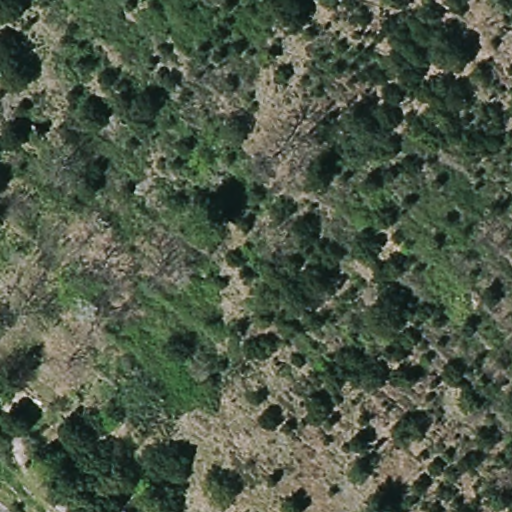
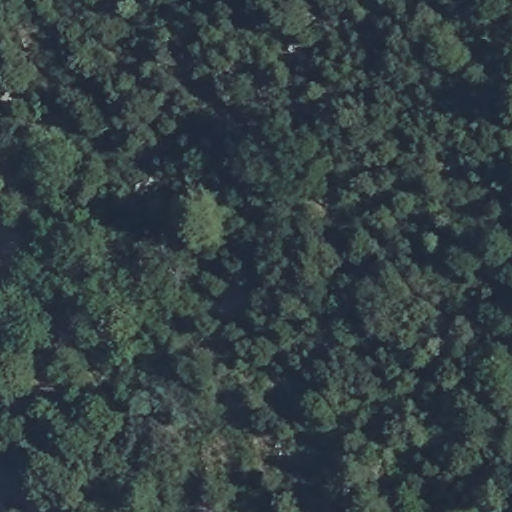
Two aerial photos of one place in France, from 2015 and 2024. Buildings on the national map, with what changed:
[]

